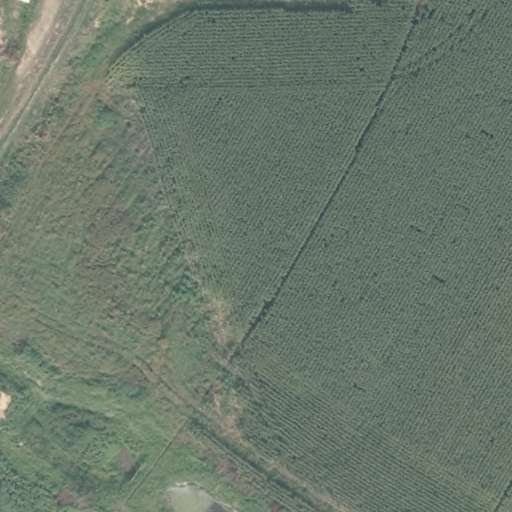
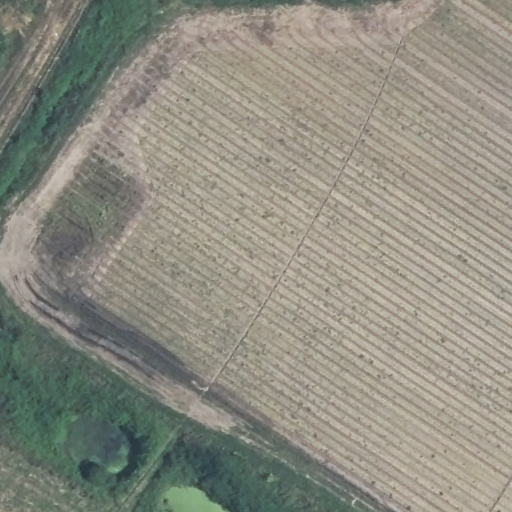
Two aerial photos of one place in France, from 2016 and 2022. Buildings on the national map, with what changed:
[]

